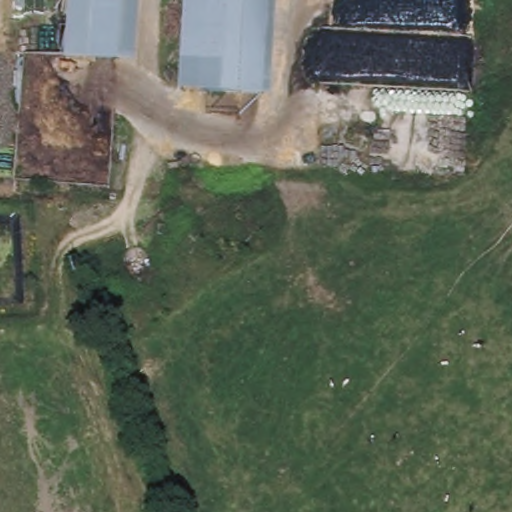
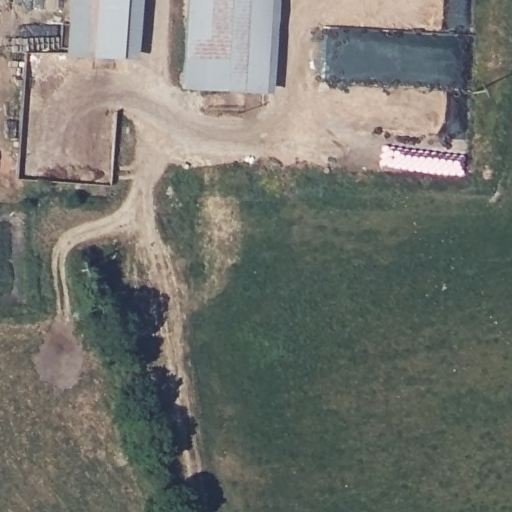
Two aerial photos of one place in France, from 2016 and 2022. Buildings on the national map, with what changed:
unchanged [(149,0),(145,62),(70,57),(74,0),(149,0)]
unchanged [(233,99),(233,92),(195,90),(201,0),(279,0),(272,102),(233,99)]

